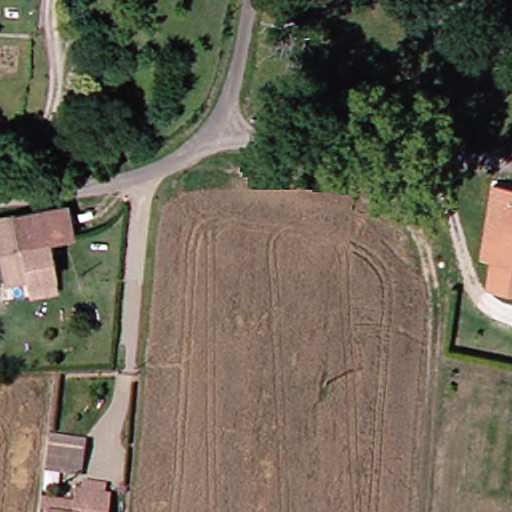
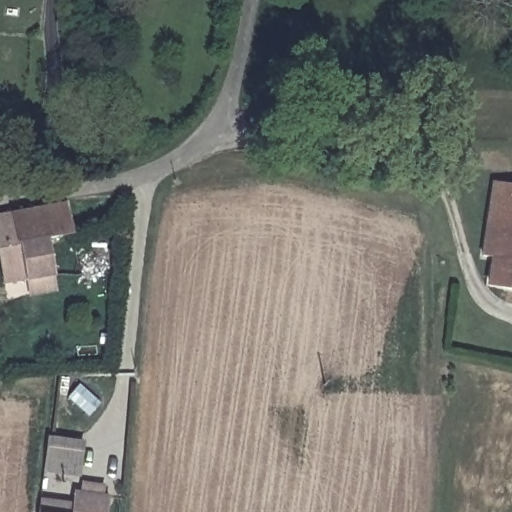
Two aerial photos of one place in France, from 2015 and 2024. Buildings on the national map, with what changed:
unchanged [(512,191),(512,233),(508,232),(501,265),(490,264),(499,190),(512,191)]
unchanged [(80,210),(86,236),(69,237),(57,237),(34,238),(30,213),(67,210),(80,210)]
unchanged [(0,219),(30,213),(34,238),(57,237),(63,278),(65,294),(48,297),(44,281),(0,285),(0,219)]
unchanged [(500,284),(501,265),(508,232),(512,233),(512,287),(500,284)]
unchanged [(46,437),(84,437),(83,470),(48,471),(46,437)]
unchanged [(40,501),(73,505),(73,494),(80,491),(80,483),(100,483),(100,493),(109,496),(107,512),(40,512),(40,507),(40,501)]

